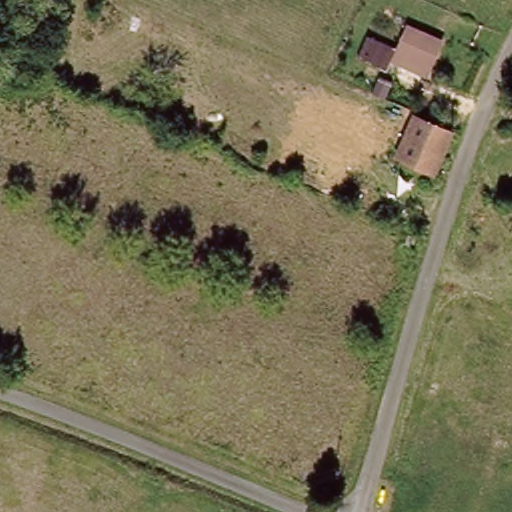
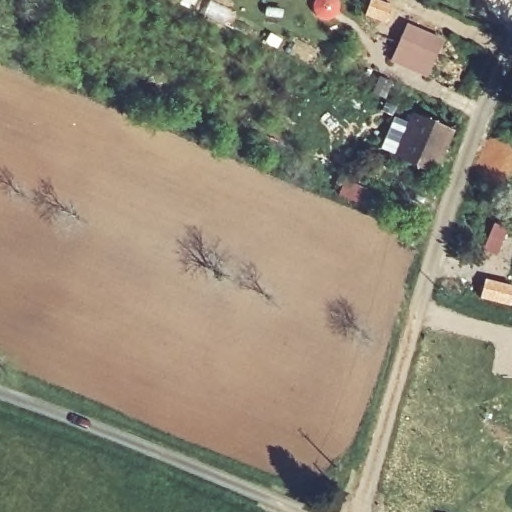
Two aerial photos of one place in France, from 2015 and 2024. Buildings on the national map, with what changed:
unchanged [(405,64),(408,56),(420,28),(455,43),(443,71),(440,79),(405,64)]
unchanged [(398,67),(387,63),(397,40),(407,44),(398,67)]
unchanged [(450,128),(446,137),(433,169),(433,171),(396,155),(409,122),(412,113),(450,128)]
new [(512,285),(512,306),(478,298),(484,277),(512,285)]

